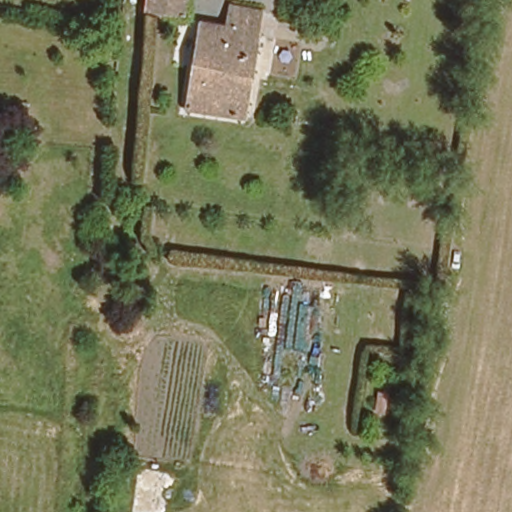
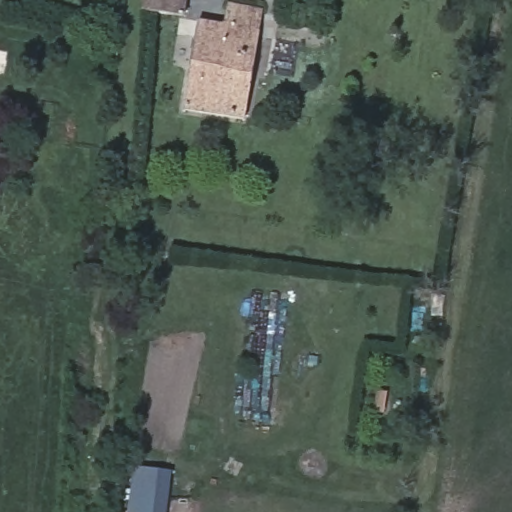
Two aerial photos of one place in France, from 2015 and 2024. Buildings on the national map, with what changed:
unchanged [(147,11),(149,0),(186,0),(184,16),(147,11)]
unchanged [(244,120),(187,108),(204,19),(235,25),(239,7),(264,11),(244,120)]
new [(135,466),(172,471),(166,512),(129,512),(135,466)]

